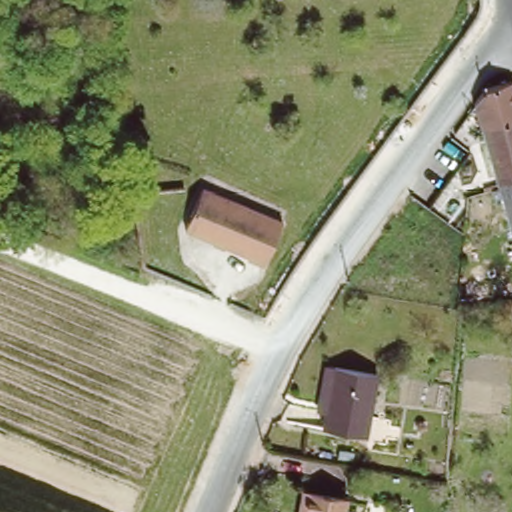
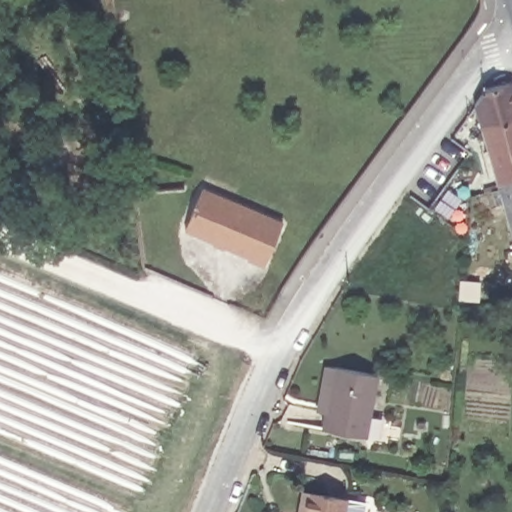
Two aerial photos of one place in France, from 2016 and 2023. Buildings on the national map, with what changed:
unchanged [(487,127),(482,105),(491,91),(512,85),(512,183),(503,187),(494,151),(487,127)]
unchanged [(503,187),(512,183),(512,217),(507,199),(499,201),(497,190),(503,188),(503,187)]
unchanged [(251,257),(252,253),(187,226),(205,184),(286,218),(267,264),(251,257)]
unchanged [(328,413),(320,411),(330,366),(338,368),(380,377),(367,438),(325,430),(328,413)]
unchanged [(300,512),(303,492),(346,501),(344,512),(299,512),(300,512)]

